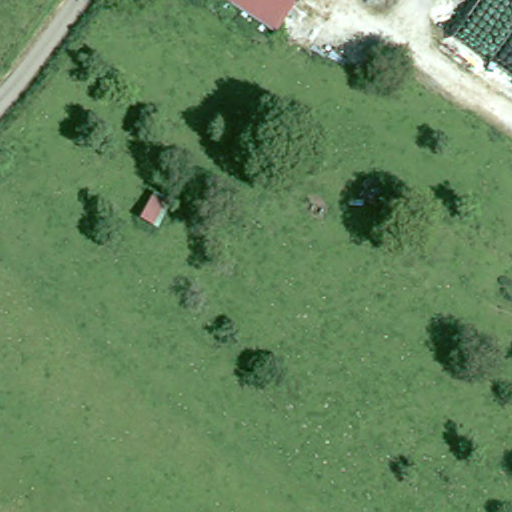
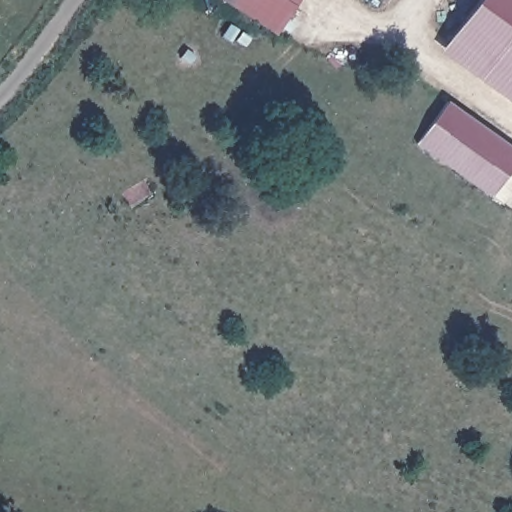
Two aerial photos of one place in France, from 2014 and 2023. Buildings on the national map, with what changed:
unchanged [(281,36),(219,0),(301,0),(281,36)]
new [(475,0),(512,0),(512,97),(511,99),(439,49),(475,0)]
new [(512,167),(491,197),(417,142),(449,97),(512,144),(512,167)]

